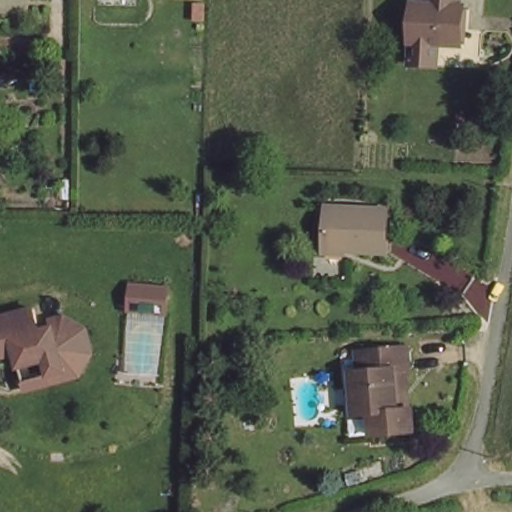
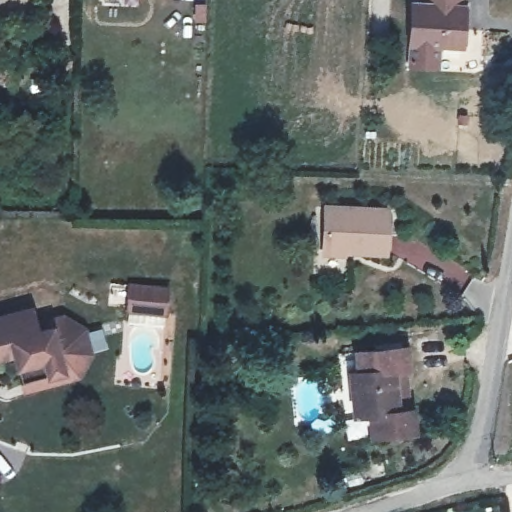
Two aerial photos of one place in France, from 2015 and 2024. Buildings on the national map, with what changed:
unchanged [(410,4),(425,5),(425,0),(456,0),(455,7),(461,8),(458,46),(407,43),(410,4)]
unchanged [(325,209),(388,213),(385,256),(323,252),(325,209)]
unchanged [(165,308),(127,305),(131,277),(171,278),(165,308)]
unchanged [(0,355),(0,314),(34,305),(40,328),(54,324),(64,322),(80,332),(85,349),(76,366),(51,372),(47,358),(21,364),(17,351),(0,355)]
unchanged [(65,313),(87,325),(94,351),(81,373),(26,387),(21,364),(47,358),(51,372),(76,366),(85,349),(80,332),(64,322),(54,324),(51,317),(65,313)]
unchanged [(413,429),(371,433),(369,413),(354,415),(350,371),(357,371),(355,351),(405,346),(408,367),(405,368),(409,407),(412,407),(413,429)]

